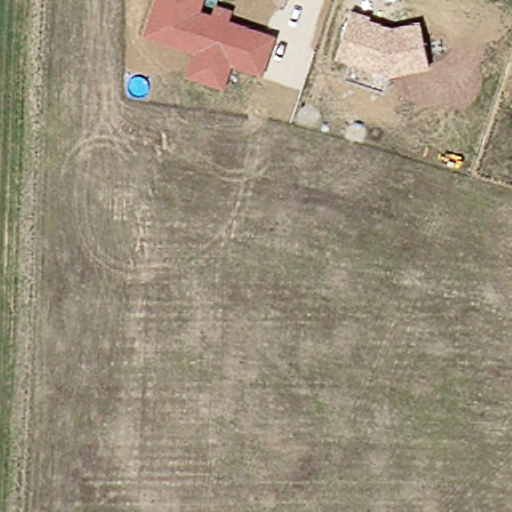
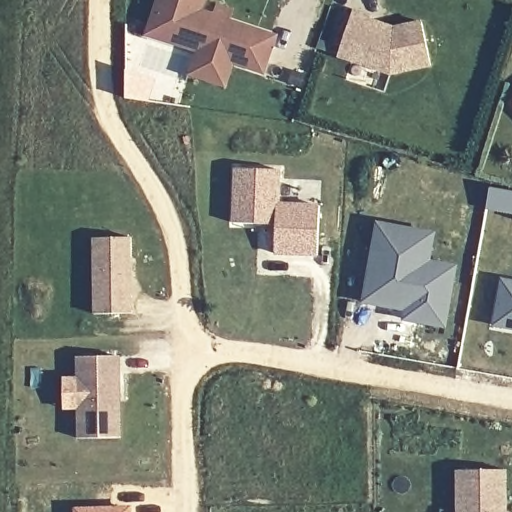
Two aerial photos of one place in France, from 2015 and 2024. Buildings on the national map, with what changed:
unchanged [(191,76),(199,53),(148,35),(159,0),(204,0),(199,15),(215,20),(218,10),(232,15),(229,25),(275,40),(263,75),(232,64),(224,87),(191,76)]
unchanged [(422,27),(431,70),(392,79),(339,60),(354,15),(372,22),(371,25),(380,29),(394,34),(422,27)]
new [(233,224),(234,169),(277,170),(276,204),(319,204),(318,253),(275,253),(275,224),(253,224),(233,224)]
new [(363,300),(378,221),(419,229),(411,272),(454,280),(447,315),(445,325),(404,318),(406,308),(363,300)]
new [(419,229),(435,231),(429,260),(456,265),(454,280),(411,272),(419,229)]
new [(93,238),(131,237),(131,255),(126,256),(126,295),(133,295),(132,312),(94,315),(93,238)]
new [(494,324),(503,278),(512,280),(512,327),(494,324)]
new [(118,391),(118,401),(119,438),(78,438),(77,357),(118,357),(118,391)]
new [(505,501),(505,512),(458,512),(458,471),(505,471),(505,501)]
new [(131,506),(132,512),(74,512),(74,507),(131,506)]

